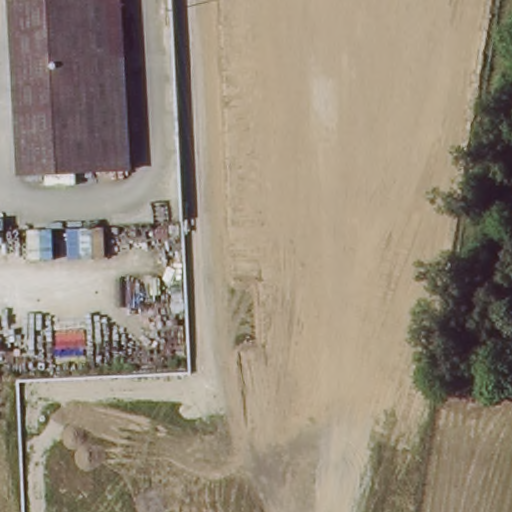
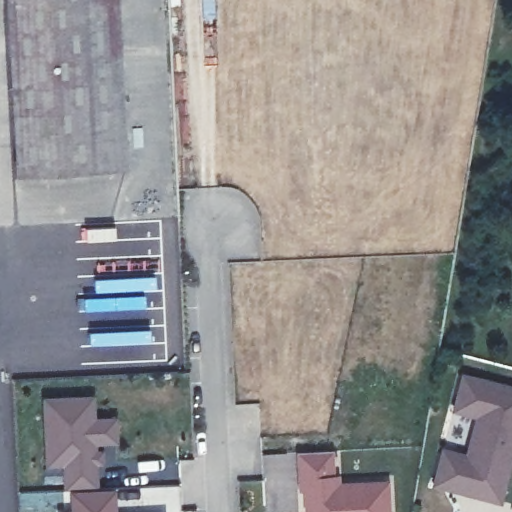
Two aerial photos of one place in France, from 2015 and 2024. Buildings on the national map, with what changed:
unchanged [(17,176),(8,0),(117,0),(127,169),(17,176)]
new [(440,448),(465,452),(475,416),(451,411),(460,372),(512,385),(512,464),(501,505),(431,487),(440,448)]
new [(93,394),(94,416),(117,415),(119,443),(94,443),(94,449),(103,448),(102,465),(95,465),(96,489),(115,488),(116,512),(58,512),(58,511),(71,511),(72,489),(62,489),(62,466),(44,467),(41,397),(93,394)]
new [(343,452),(344,482),(395,482),(396,512),(319,512),(319,511),(310,511),(309,491),(301,490),(300,451),(343,452)]

